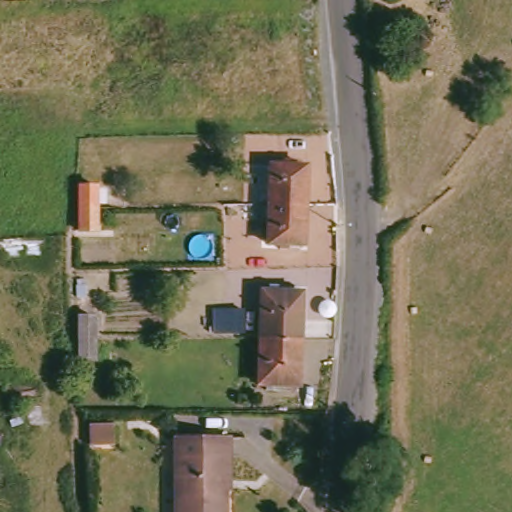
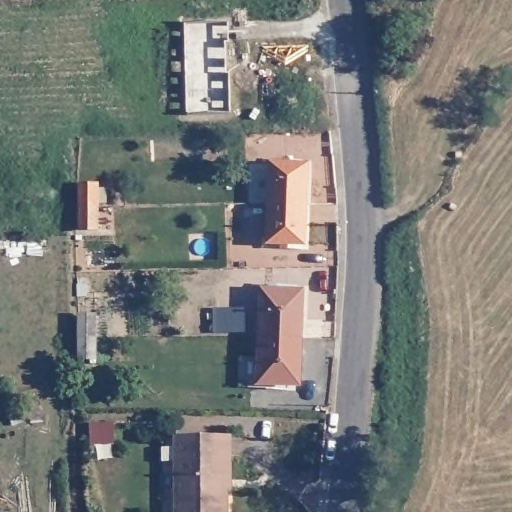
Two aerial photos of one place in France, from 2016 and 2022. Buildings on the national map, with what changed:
new [(228,25),(228,116),(186,118),(183,25),(228,25)]
unchanged [(266,164),(301,166),(300,180),(298,206),(263,204),(265,172),(266,164)]
unchanged [(85,237),(85,213),(86,189),(103,189),(102,213),(102,236),(85,237)]
unchanged [(298,206),(295,245),(260,242),(263,204),(298,206)]
unchanged [(256,341),(259,295),(296,298),(294,340),(256,341)]
unchanged [(78,372),(80,352),(80,328),(98,328),(97,352),(96,372),(78,372)]
unchanged [(294,340),(291,384),(255,383),(256,341),(294,340)]
unchanged [(88,435),(115,435),(117,459),(89,460),(88,435)]
unchanged [(174,436),(223,436),(223,459),(217,459),(218,512),(174,512),(173,448),(174,436)]

